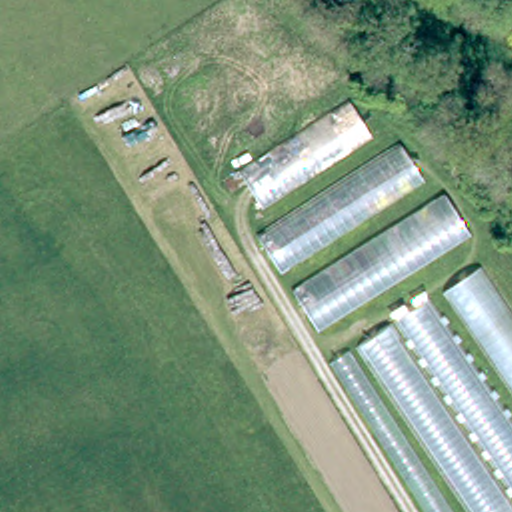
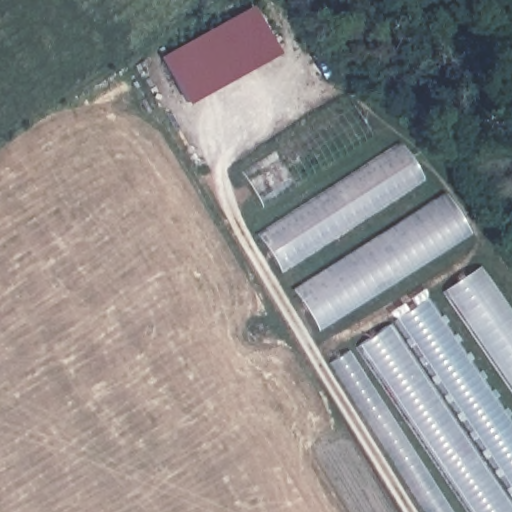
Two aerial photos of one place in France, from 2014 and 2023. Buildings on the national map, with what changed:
new [(279,55),(187,105),(159,58),(252,6),(279,55)]
unchanged [(279,269),(260,230),(398,142),(422,179),(279,269)]
unchanged [(315,331),(289,289),(443,188),(467,234),(315,331)]
unchanged [(484,263),(512,303),(512,354),(463,280),(484,263)]
unchanged [(512,409),(512,512),(421,512),(328,362),(429,289),(512,409)]

